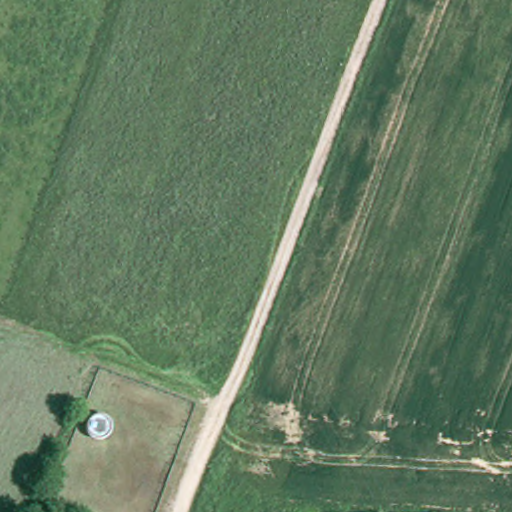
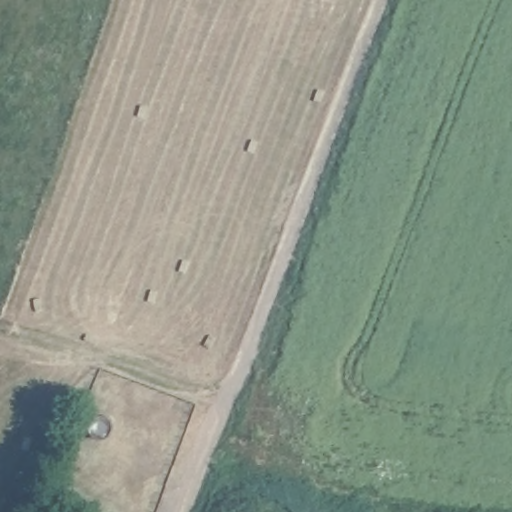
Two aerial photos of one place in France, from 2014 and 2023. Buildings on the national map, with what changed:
unchanged [(90,423),(93,419),(98,417),(104,417),(108,420),(112,423),(112,429),(111,434),(107,438),(103,440),(97,440),(92,438),(90,433),(88,428),(90,423)]

